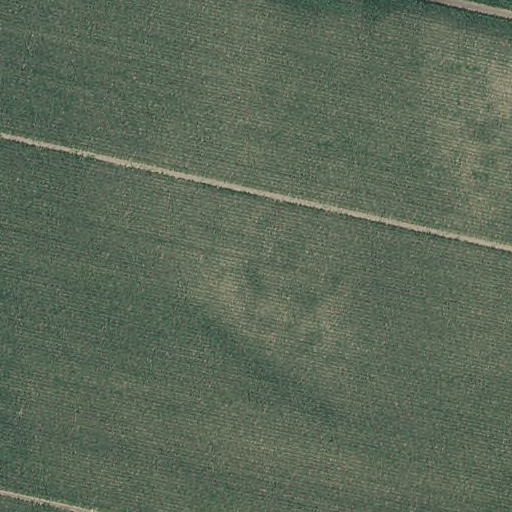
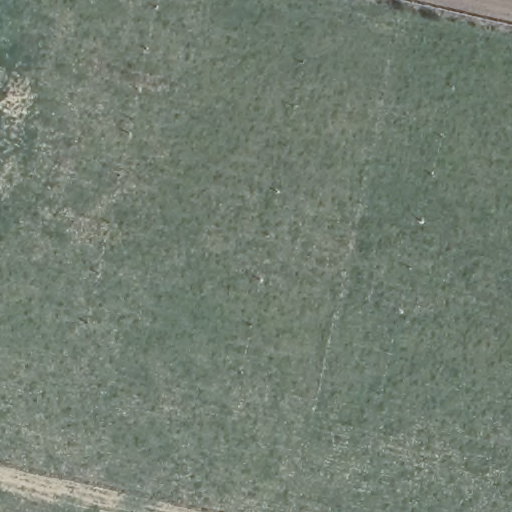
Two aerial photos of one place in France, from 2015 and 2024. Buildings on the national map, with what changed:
[]

